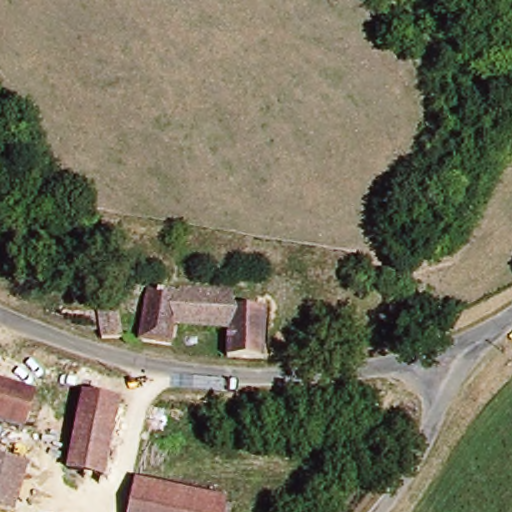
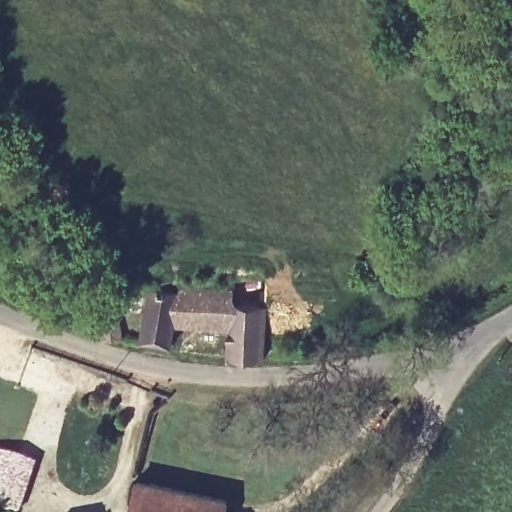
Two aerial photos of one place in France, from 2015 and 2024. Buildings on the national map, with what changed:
unchanged [(171,292),(171,328),(171,341),(146,340),(146,291),(171,292)]
unchanged [(236,293),(237,307),(236,329),(225,329),(171,328),(171,292),(236,293)]
unchanged [(122,306),(128,343),(106,340),(100,309),(122,306)]
unchanged [(236,329),(237,307),(267,309),(266,362),(227,360),(225,329),(236,329)]
unchanged [(0,426),(0,389),(34,400),(24,433),(0,426)]
demolished [(113,403),(103,481),(68,475),(78,398),(113,403)]
unchanged [(25,467),(13,512),(0,512),(0,460),(25,467)]
unchanged [(136,487),(225,505),(224,512),(132,512),(136,487)]

